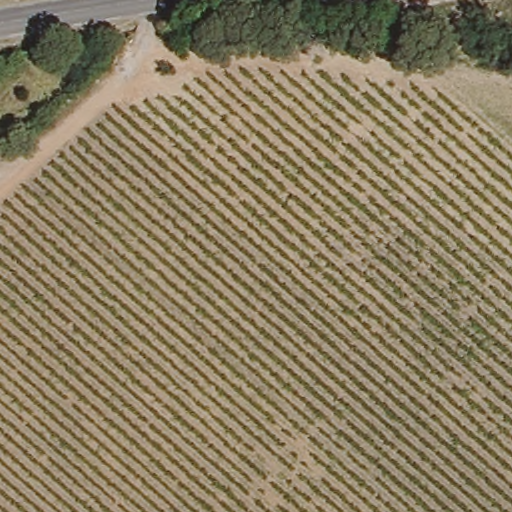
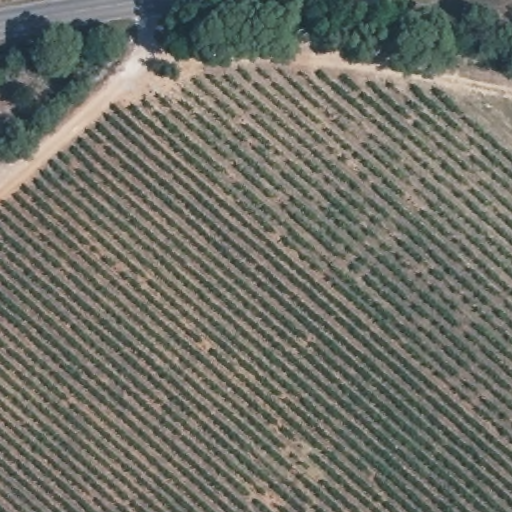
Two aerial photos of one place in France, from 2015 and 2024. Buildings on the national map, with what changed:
[]

